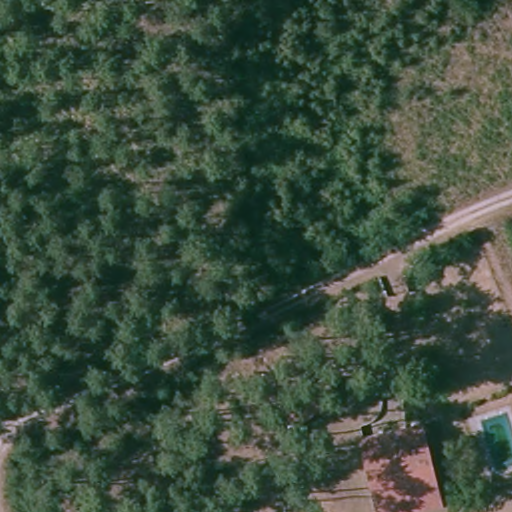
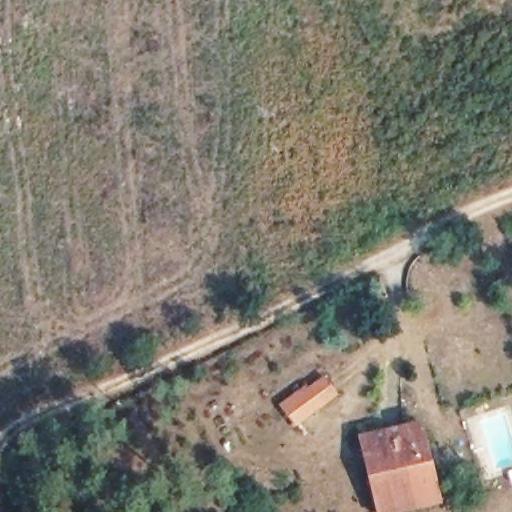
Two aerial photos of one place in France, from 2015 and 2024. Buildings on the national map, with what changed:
new [(326,375),(340,395),(296,425),(283,407),(280,401),(305,384),(307,387),(326,375)]
unchanged [(415,418),(446,504),(425,512),(382,512),(355,439),(386,428),(415,418)]

